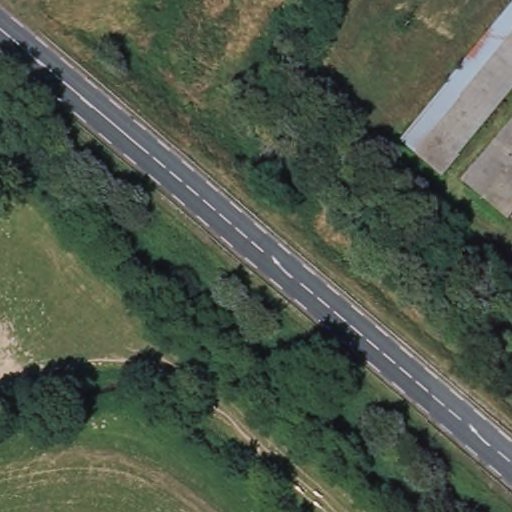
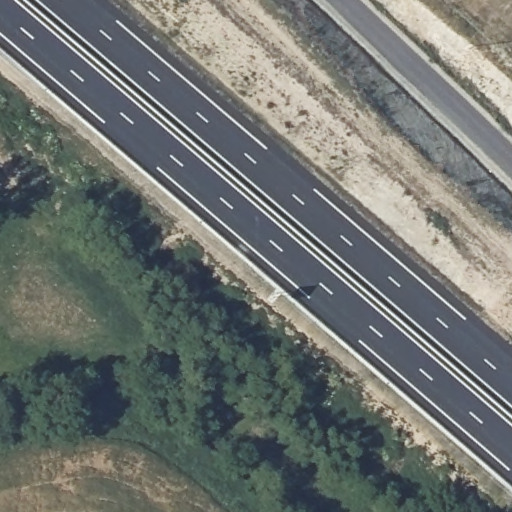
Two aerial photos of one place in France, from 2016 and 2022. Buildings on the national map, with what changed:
demolished [(442,175),(401,140),(512,11),(512,93),(442,175)]
demolished [(465,177),(512,121),(512,194),(500,207),(465,177)]
demolished [(500,207),(512,194),(512,217),(500,207)]

